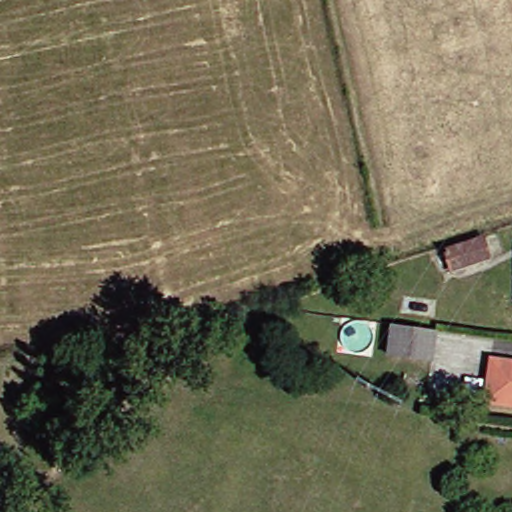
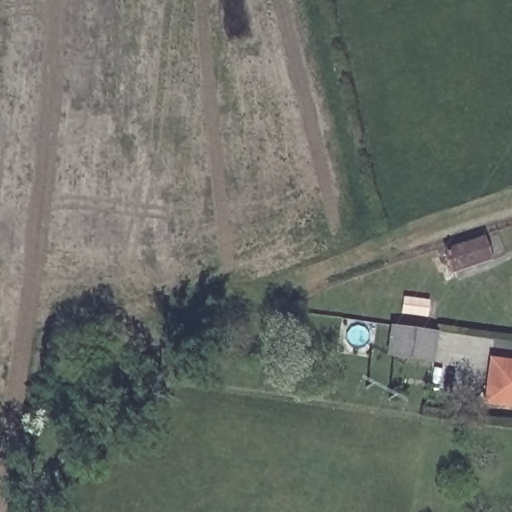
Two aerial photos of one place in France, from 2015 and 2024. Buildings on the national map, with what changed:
unchanged [(442,254),(475,243),(483,240),(492,263),(483,265),(448,278),(442,254)]
unchanged [(393,356),(397,327),(439,332),(436,360),(393,356)]
unchanged [(494,404),(500,360),(512,362),(512,406),(494,404)]

